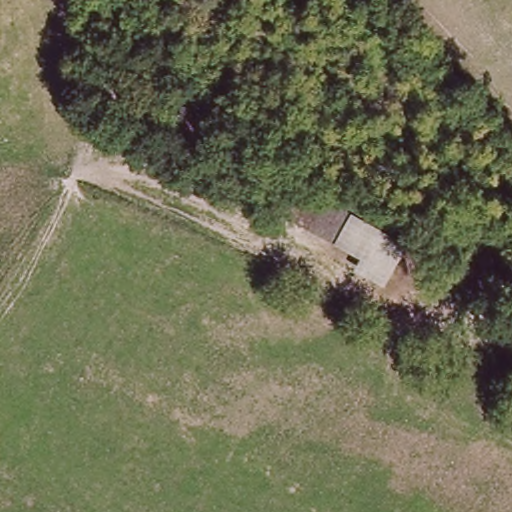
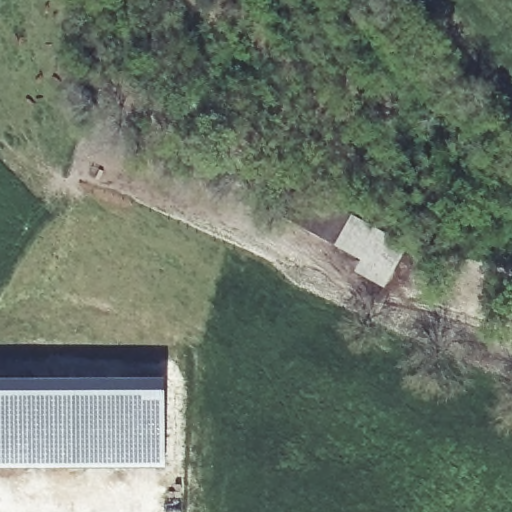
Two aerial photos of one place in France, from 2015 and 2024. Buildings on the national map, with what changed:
unchanged [(310,202),(355,222),(340,251),(295,231),(310,202)]
new [(163,377),(164,466),(0,466),(0,378),(163,377)]

